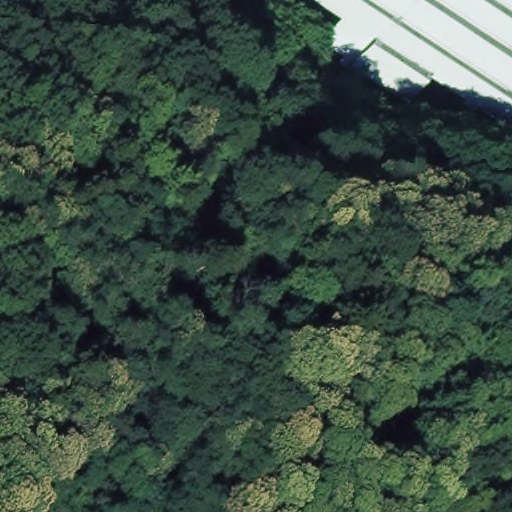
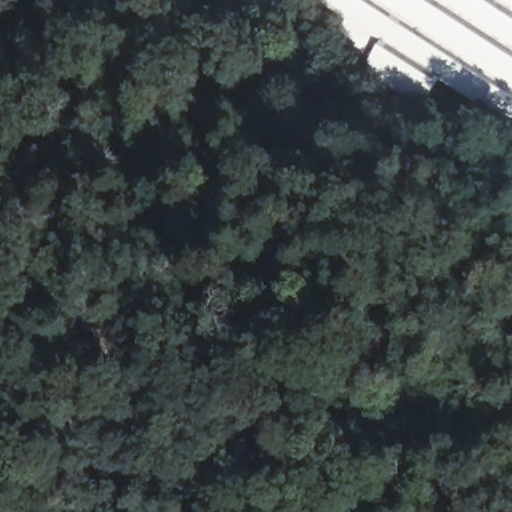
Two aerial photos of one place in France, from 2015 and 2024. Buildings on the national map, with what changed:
unchanged [(481,100),(442,74),(386,38),(351,16),(327,0),(512,0),(512,121),(494,109),(481,100)]
unchanged [(366,66),(364,70),(355,64),(359,57),(336,40),(351,16),(386,38),(366,66)]
unchanged [(366,66),(386,38),(442,74),(422,102),(389,80),(366,66)]
unchanged [(288,172),(215,122),(231,100),(284,135),(281,138),(286,141),(291,133),(307,145),(288,172)]
unchanged [(331,161),(298,207),(274,192),(288,172),(307,145),(331,161)]

